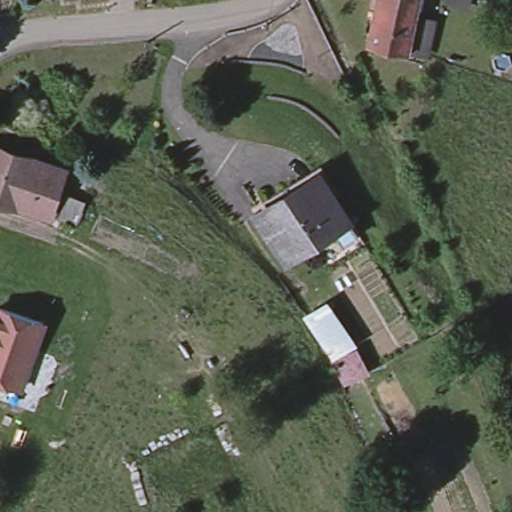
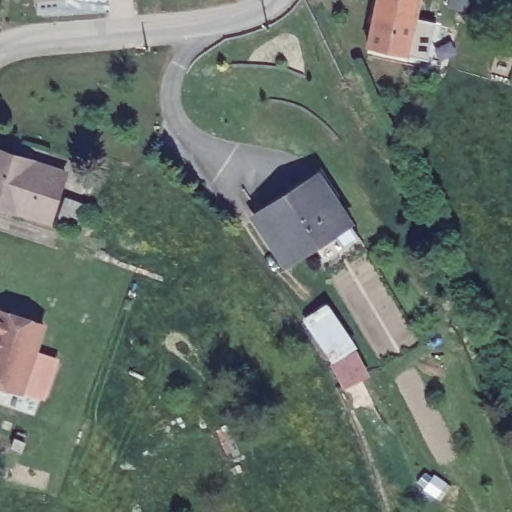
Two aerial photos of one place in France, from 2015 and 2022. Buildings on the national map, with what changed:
unchanged [(408,53),(407,56),(367,47),(375,10),(378,0),(419,0),(415,19),(432,22),(425,57),(408,53)]
unchanged [(463,7),(449,2),(450,0),(467,0),(465,7),(463,7)]
unchanged [(0,203),(0,153),(65,174),(50,220),(0,203)]
unchanged [(333,239),(330,234),(284,264),(253,219),(272,207),(267,201),(318,166),(338,194),(332,198),(348,222),(351,226),(333,239)]
unchanged [(325,307),(340,330),(352,348),(331,362),(303,321),(325,307)]
unchanged [(21,399),(0,392),(0,311),(46,325),(21,399)]

